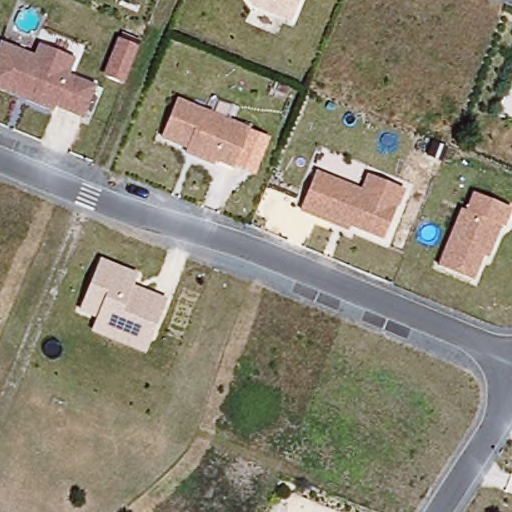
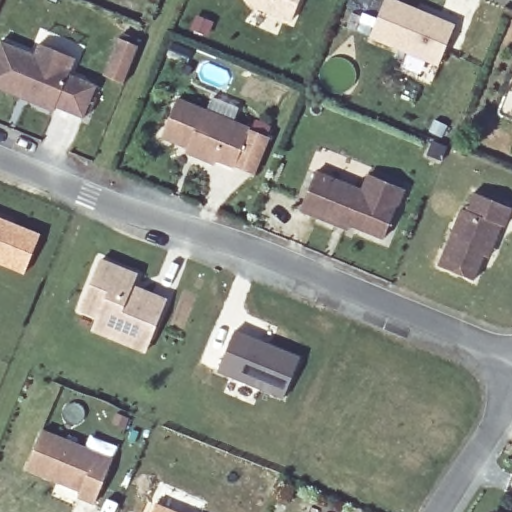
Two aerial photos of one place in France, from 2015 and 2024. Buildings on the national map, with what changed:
unchanged [(241,0),(297,0),(286,26),(249,11),(241,0)]
new [(452,27),(437,64),(372,37),(387,0),(389,0),(452,27)]
unchanged [(45,30),(81,44),(69,74),(96,85),(84,118),(57,107),(54,112),(0,90),(0,42),(1,39),(36,53),(45,30)]
unchanged [(116,37),(139,46),(124,85),(101,76),(116,37)]
unchanged [(188,147),(162,137),(177,100),(250,130),(235,167),(217,160),(216,164),(200,158),(186,152),(188,147)]
unchanged [(360,190),(365,175),(404,192),(383,245),(299,213),(314,174),(360,190)]
unchanged [(467,211),(473,191),(512,206),(512,211),(505,229),(502,227),(490,258),(485,256),(474,281),(436,265),(459,207),(467,211)]
new [(24,274),(0,264),(0,217),(40,234),(24,274)]
unchanged [(96,318),(78,311),(100,256),(140,272),(135,285),(168,297),(146,354),(91,332),(96,318)]
new [(235,330),(299,356),(282,397),(217,372),(235,330)]
new [(113,459),(96,501),(24,472),(41,430),(113,459)]
new [(177,512),(152,512),(155,504),(177,512)]

